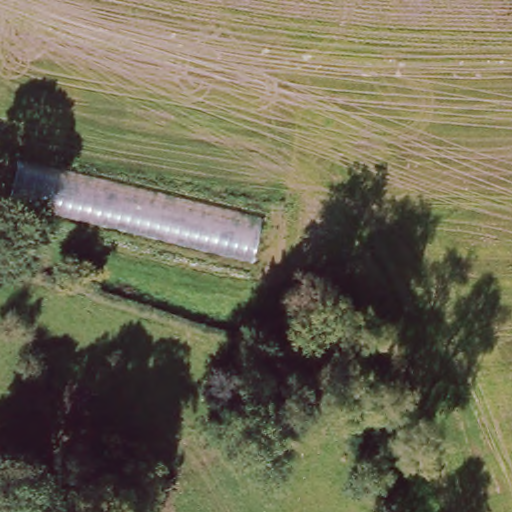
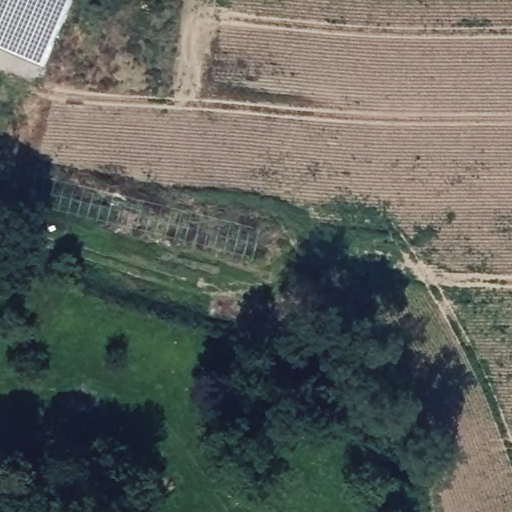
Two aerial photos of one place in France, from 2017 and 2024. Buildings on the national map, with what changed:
new [(0,43),(0,0),(70,0),(44,62),(0,43)]

